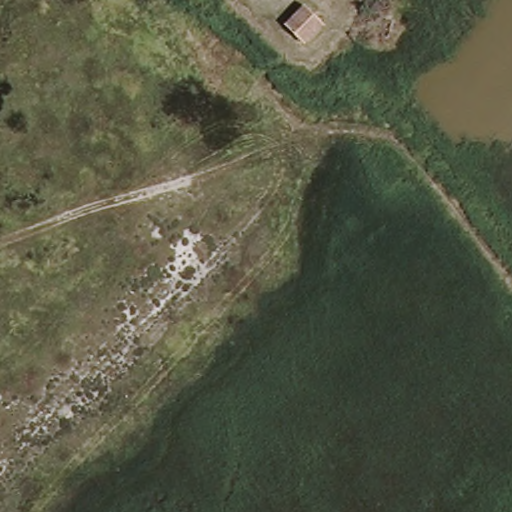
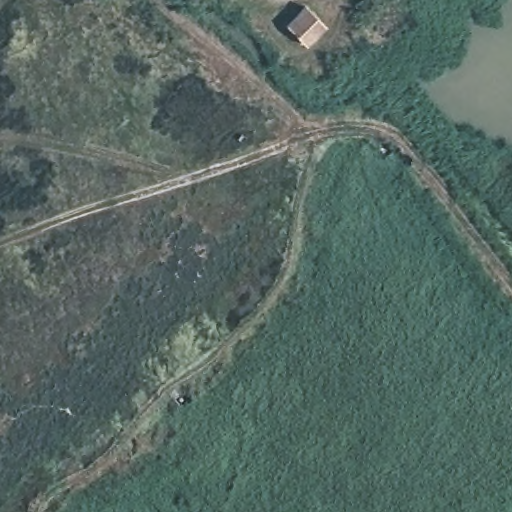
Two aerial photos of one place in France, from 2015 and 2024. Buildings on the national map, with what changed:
unchanged [(304,5),(321,23),(305,40),(286,24),(304,5)]

